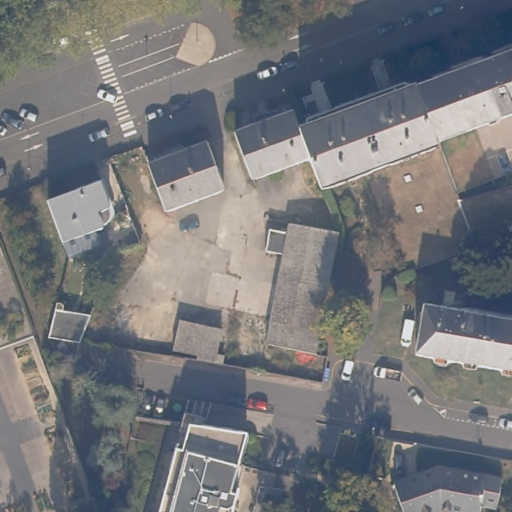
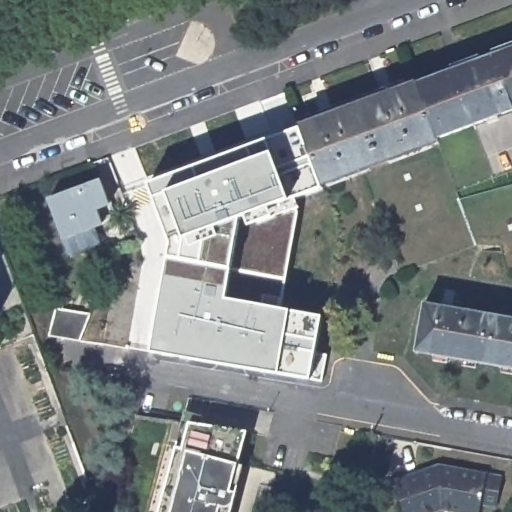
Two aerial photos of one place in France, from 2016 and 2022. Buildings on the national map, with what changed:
unchanged [(454,75),(453,71),(512,50),(512,116),(439,143),(419,89),(454,75)]
unchanged [(499,250),(476,247),(398,275),(360,172),(320,186),(310,157),(300,131),(417,87),(418,89),(419,89),(439,143),(460,202),(512,188),(512,272),(508,273),(499,250)]
demolished [(310,157),(251,179),(233,131),(293,110),(300,131),(310,157)]
new [(311,379),(280,375),(151,353),(170,243),(147,184),(267,139),(299,127),(300,131),(310,157),(320,186),(291,200),(239,220),(231,268),(226,297),(280,308),(290,310),(323,315),(311,379)]
demolished [(147,164),(205,142),(222,189),(163,210),(147,164)]
unchanged [(100,172),(108,198),(106,200),(110,209),(110,212),(104,215),(93,220),(99,235),(67,247),(47,191),(100,172)]
new [(280,308),(226,297),(231,268),(239,220),(291,200),(298,212),(280,308)]
demolished [(264,343),(280,255),(262,251),(266,227),(284,230),(286,221),(336,230),(337,232),(315,353),(264,343)]
unchanged [(87,315),(75,341),(45,331),(54,305),(58,292),(61,293),(63,296),(63,297),(64,300),(64,302),(62,307),(87,315)]
unchanged [(423,306),(512,321),(512,369),(415,352),(423,306)]
demolished [(210,358),(169,350),(173,320),(214,329),(210,358)]
unchanged [(170,470),(177,445),(183,447),(190,422),(247,429),(231,487),(237,490),(231,512),(165,512),(176,471),(170,470)]
unchanged [(483,505),(482,512),(451,512),(444,510),(440,512),(406,512),(395,483),(441,467),(502,480),(497,507),(483,505)]

